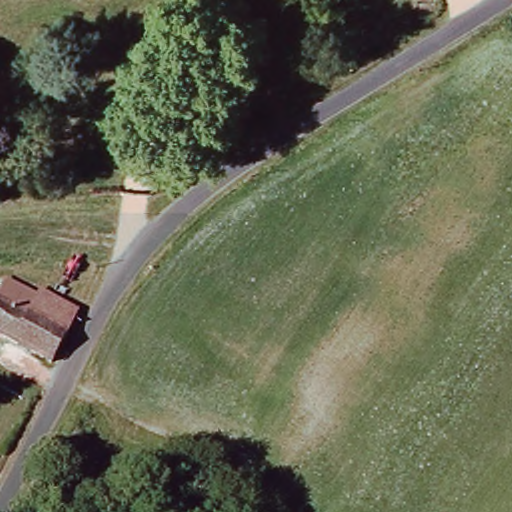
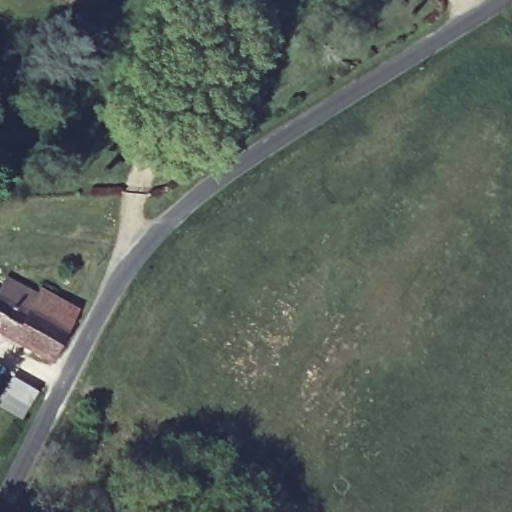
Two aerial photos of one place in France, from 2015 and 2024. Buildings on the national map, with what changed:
unchanged [(41,294),(82,319),(56,369),(0,339),(0,297),(6,286),(38,299),(41,294)]

